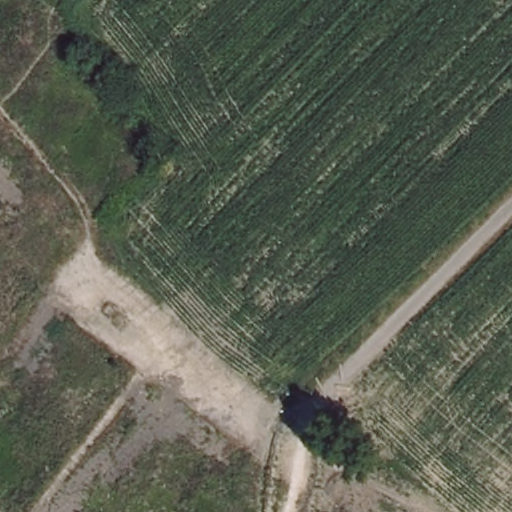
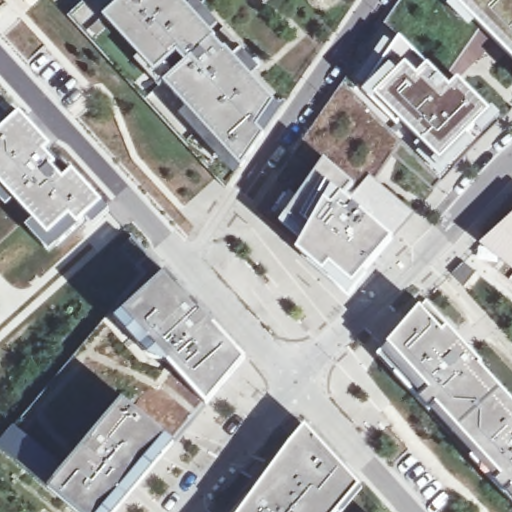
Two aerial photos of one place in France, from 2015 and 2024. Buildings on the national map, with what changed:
new [(90,0),(212,0),(204,7),(243,49),(233,59),(282,111),(227,190),(69,19),(90,0)]
new [(256,211),(344,85),(403,0),(512,0),(512,59),(499,47),(463,84),(500,124),(479,144),(443,183),(434,192),(398,155),(378,183),(416,215),(349,292),(256,211)]
new [(0,134),(0,103),(15,121),(0,134)]
new [(56,166),(52,169),(71,192),(61,201),(82,224),(55,247),(31,219),(0,184),(0,134),(15,121),(56,166)]
new [(0,246),(0,184),(31,219),(0,246)]
new [(489,240),(512,218),(512,258),(489,240)]
new [(489,240),(512,258),(512,267),(485,246),(489,240)]
new [(465,264),(477,273),(465,288),(454,275),(465,264)]
new [(237,357),(199,402),(117,311),(159,272),(237,357)]
new [(451,327),(449,330),(481,366),(479,367),(512,403),(512,505),(379,358),(427,302),(451,327)]
new [(144,357),(109,320),(117,311),(164,363),(144,357)]
new [(168,443),(111,512),(75,512),(46,487),(119,402),(161,437),(168,443)]
new [(0,453),(0,438),(13,425),(63,468),(46,487),(0,453)]
new [(304,426),(360,487),(339,512),(239,512),(283,451),(304,426)]

